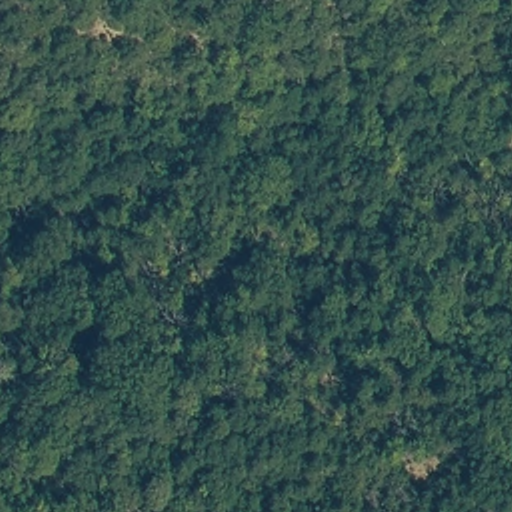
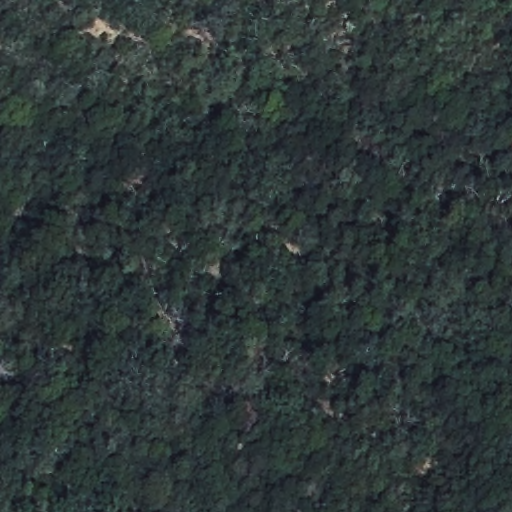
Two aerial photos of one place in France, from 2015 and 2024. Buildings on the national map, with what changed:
[]

